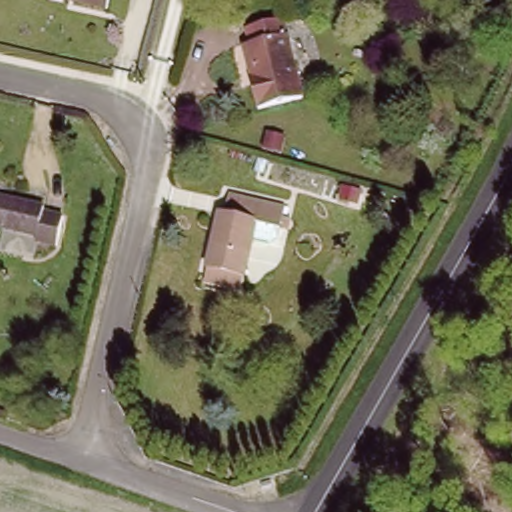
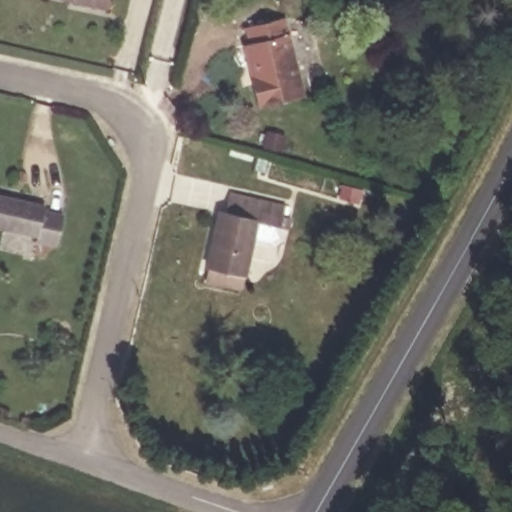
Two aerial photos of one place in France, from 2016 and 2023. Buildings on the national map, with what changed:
unchanged [(76,0),(112,0),(110,6),(76,0)]
unchanged [(299,95),(259,106),(251,74),(243,42),(254,40),(250,21),(283,15),(301,90),(299,95)]
unchanged [(208,270),(211,252),(222,200),(228,201),(231,185),(286,196),(282,225),(273,232),(253,229),(246,258),(243,278),(208,270)]
unchanged [(42,214),(60,217),(56,241),(34,238),(35,232),(0,226),(0,199),(43,206),(42,214)]

